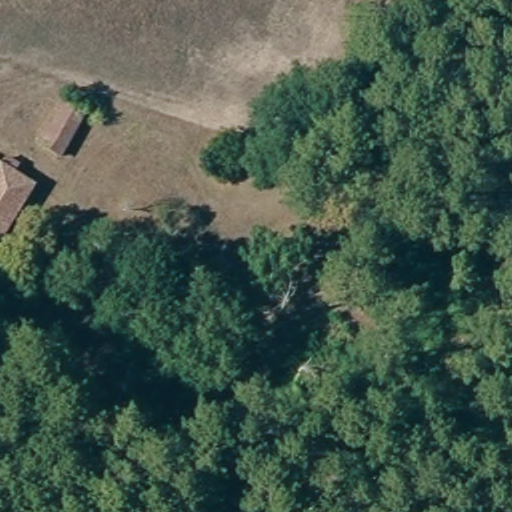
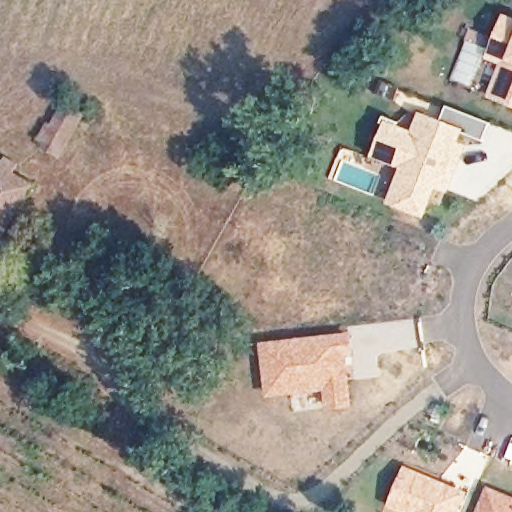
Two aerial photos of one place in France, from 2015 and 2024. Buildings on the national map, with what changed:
new [(485,58),(502,13),(512,17),(512,107),(506,104),(486,97),(501,63),(485,58)]
new [(394,202),(406,169),(392,162),(403,131),(413,134),(422,115),(440,123),(448,105),(492,123),(483,141),(461,131),(454,150),(460,153),(446,188),(436,184),(424,213),(394,202)]
unchanged [(36,152),(64,106),(80,117),(52,162),(47,159),(36,152)]
unchanged [(0,241),(0,175),(30,193),(0,241)]
new [(351,331),(353,356),(350,357),(352,408),(324,411),(322,391),(264,398),(260,342),(351,331)]
new [(467,493),(459,512),(399,512),(386,506),(402,465),(467,493)]
new [(512,497),(512,512),(475,512),(486,486),(512,497)]

